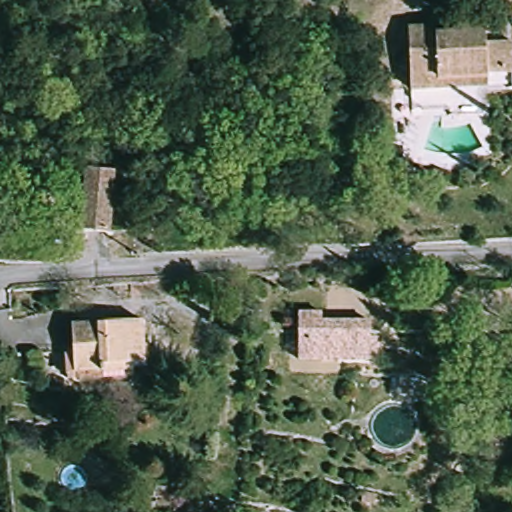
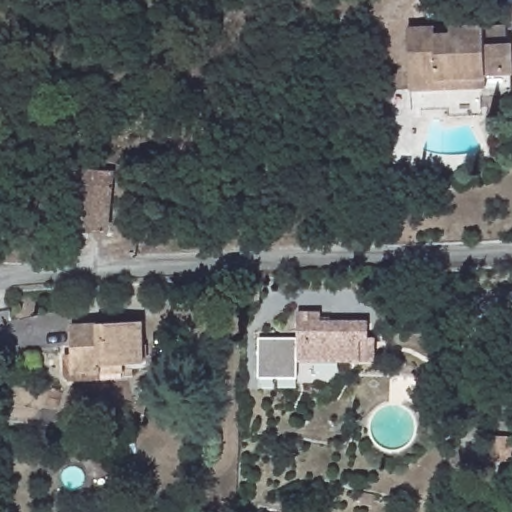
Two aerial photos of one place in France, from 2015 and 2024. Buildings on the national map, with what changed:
unchanged [(511,90),(502,90),(502,86),(409,90),(406,29),(483,26),(504,25),(505,43),(509,43),(511,90)]
unchanged [(107,234),(79,232),(84,167),(112,170),(107,234)]
unchanged [(142,282),(169,281),(169,292),(130,295),(129,283),(142,282)]
unchanged [(378,358),(364,358),(301,358),(301,312),(324,312),(324,321),(371,320),(371,336),(378,336),(378,358)]
unchanged [(75,325),(147,322),(148,362),(135,363),(137,377),(71,380),(70,355),(77,354),(75,325)]
new [(301,358),(298,358),(298,379),(258,378),(258,337),(301,337),(301,358)]
unchanged [(479,435),(496,436),(495,462),(477,461),(479,435)]

